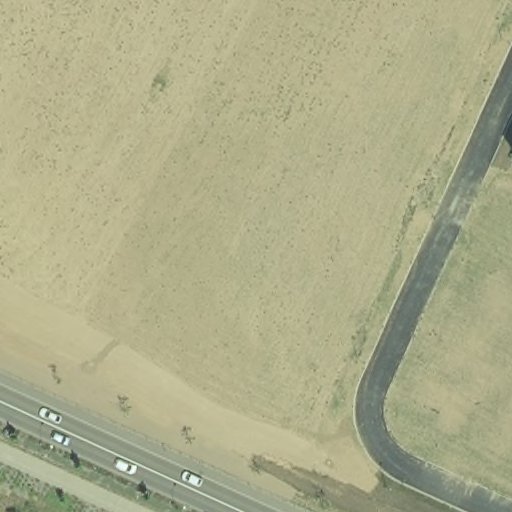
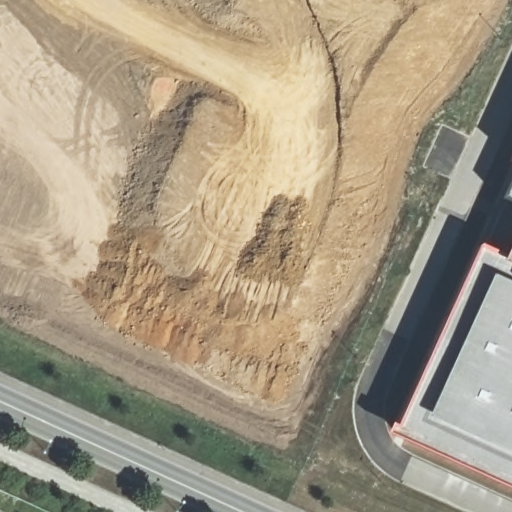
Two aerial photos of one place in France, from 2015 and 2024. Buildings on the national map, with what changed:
new [(474,248),(504,261),(512,240),(512,490),(391,436),(474,248)]

